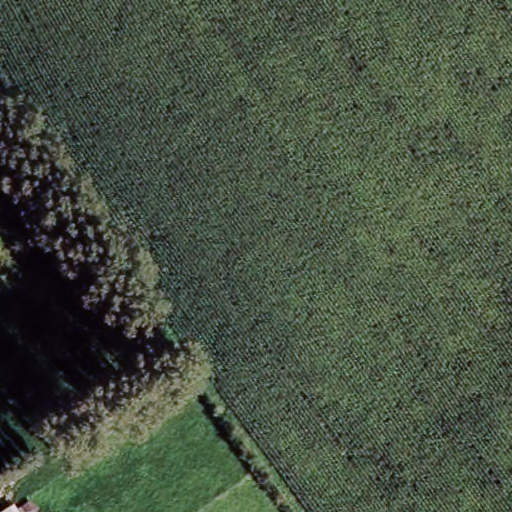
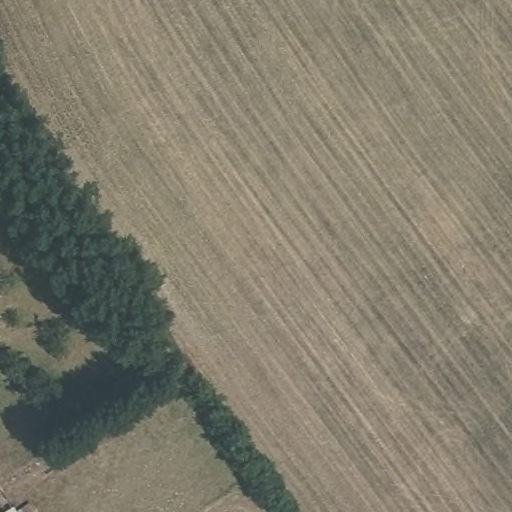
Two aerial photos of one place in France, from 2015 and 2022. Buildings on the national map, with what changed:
unchanged [(15,506),(19,512),(4,512),(15,506)]

